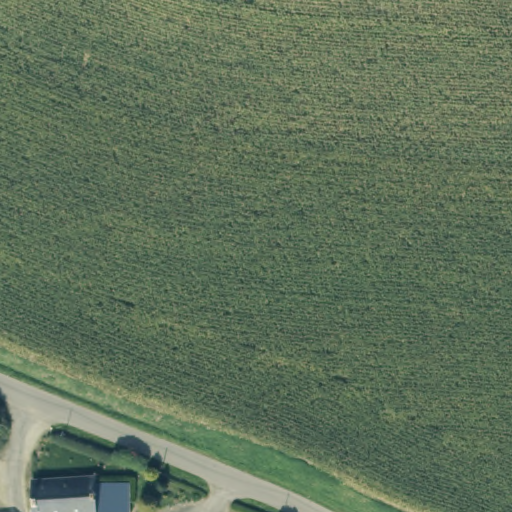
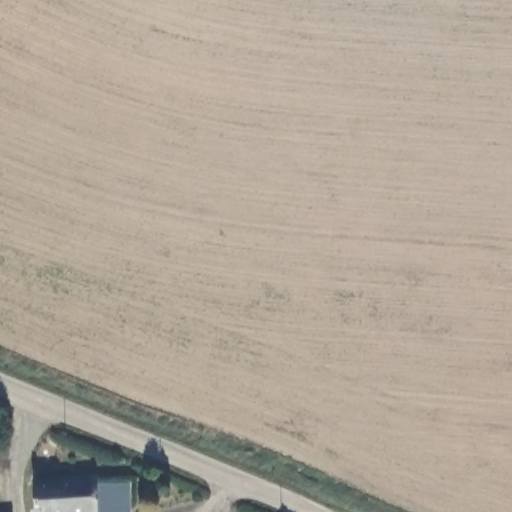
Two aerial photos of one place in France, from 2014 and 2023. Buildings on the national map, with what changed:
unchanged [(94,477),(95,494),(115,492),(117,512),(36,512),(34,482),(94,477)]

